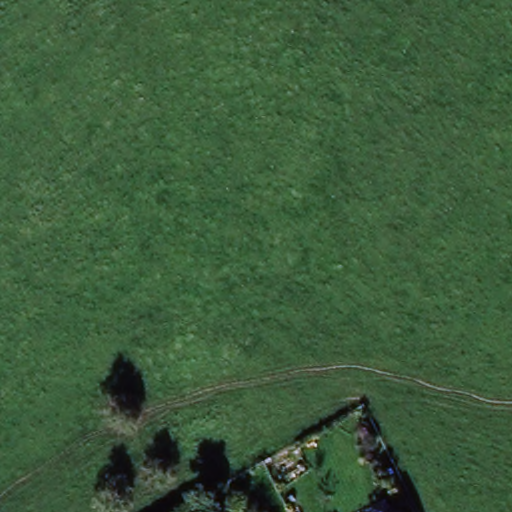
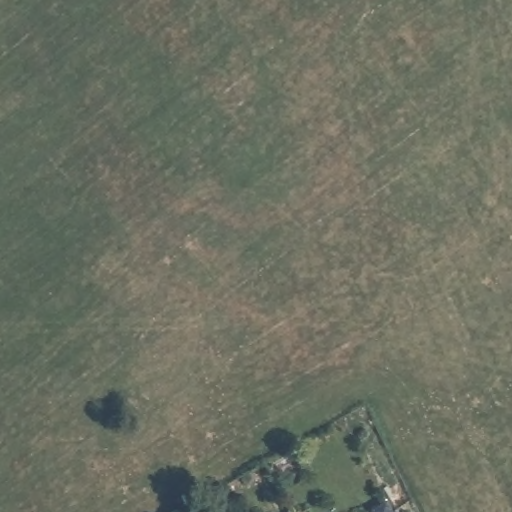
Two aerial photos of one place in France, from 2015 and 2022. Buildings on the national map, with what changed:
unchanged [(396,512),(392,512),(395,510),(396,512)]

